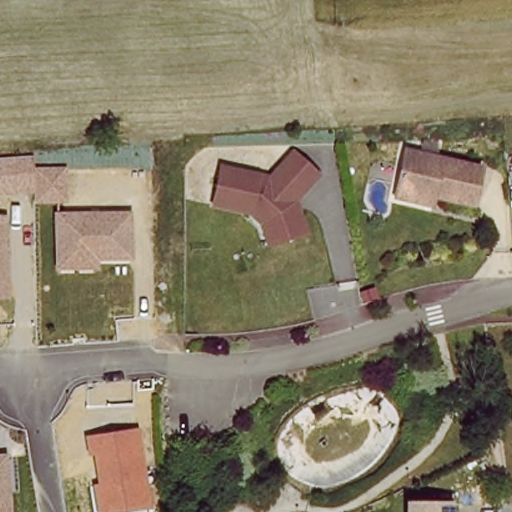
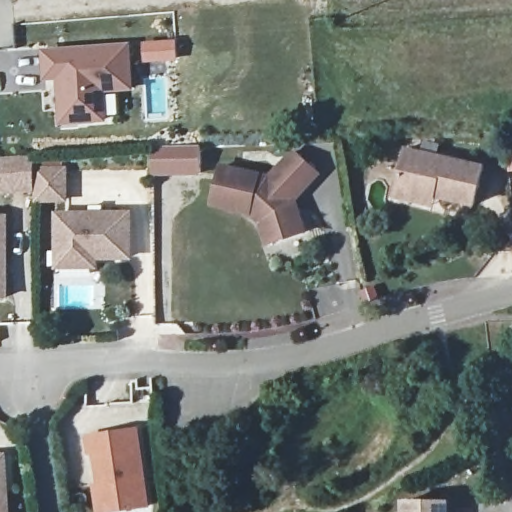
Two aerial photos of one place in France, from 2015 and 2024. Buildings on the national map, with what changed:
new [(131,43),(134,91),(105,94),(107,122),(60,126),(58,81),(43,83),(39,50),(131,43)]
new [(153,177),(153,147),(200,146),(201,176),(153,177)]
unchanged [(392,198),(394,190),(403,151),(479,167),(471,205),(432,197),(429,206),(392,198)]
unchanged [(33,166),(66,166),(68,202),(35,203),(34,191),(0,195),(0,157),(32,154),(33,166)]
unchanged [(259,225),(246,213),(211,207),(218,170),(269,180),(291,154),(314,174),(291,203),(303,234),(276,244),(268,247),(259,225)]
unchanged [(133,210),(133,260),(99,260),(99,271),(54,272),(54,212),(133,210)]
unchanged [(10,298),(0,298),(0,215),(7,215),(10,298)]
unchanged [(152,507),(122,512),(97,512),(92,483),(98,482),(93,453),(88,454),(85,435),(138,428),(152,507)]
unchanged [(12,512),(0,512),(0,455),(8,454),(12,512)]
unchanged [(444,500),(444,512),(403,512),(403,501),(444,500)]

